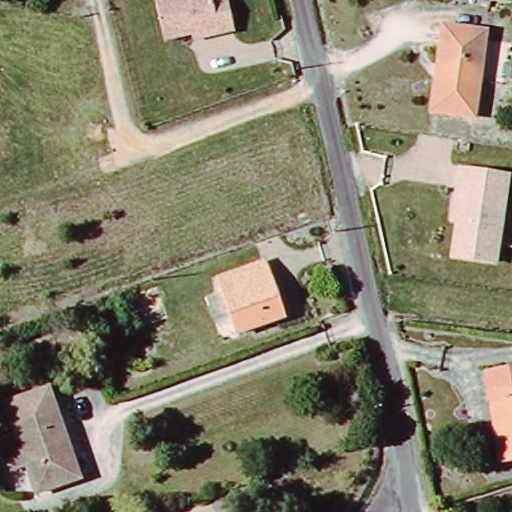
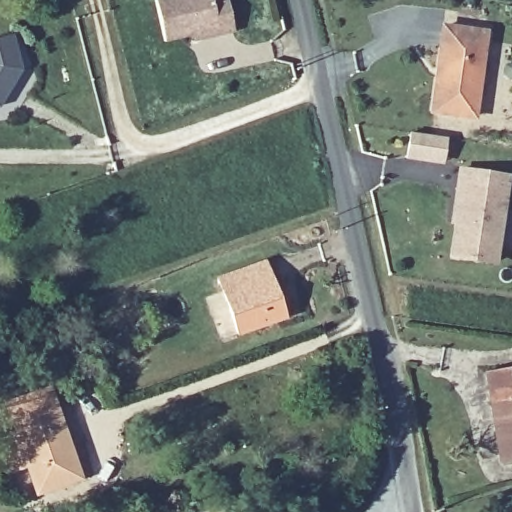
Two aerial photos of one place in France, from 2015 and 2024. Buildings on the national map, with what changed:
unchanged [(194,30),(165,36),(157,0),(229,0),(234,27),(219,31),(195,37),(194,30)]
unchanged [(447,25),(489,30),(478,111),(478,115),(436,109),(436,107),(440,78),(442,64),(447,25)]
new [(22,67),(18,75),(25,79),(8,108),(2,104),(0,106),(0,39),(13,36),(22,67)]
unchanged [(461,187),(464,167),(505,173),(512,174),(509,193),(503,233),(460,227),(461,221),(456,221),(461,187)]
unchanged [(498,260),(456,254),(460,227),(503,233),(498,260)]
unchanged [(234,333),(218,286),(263,271),(279,318),(234,333)]
unchanged [(486,368),(512,363),(512,462),(504,464),(486,368)]
unchanged [(7,401),(49,387),(79,476),(35,491),(25,462),(13,466),(2,435),(17,430),(7,401)]

